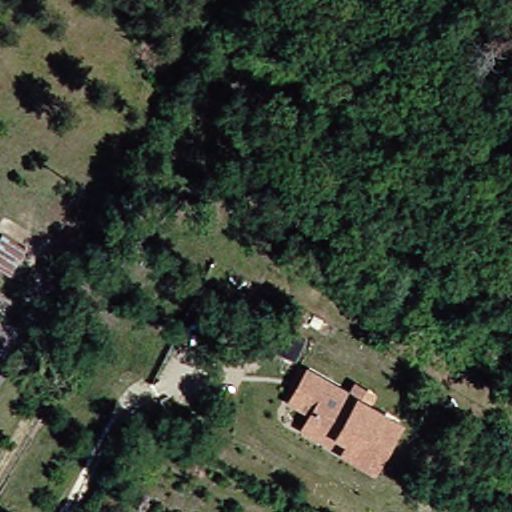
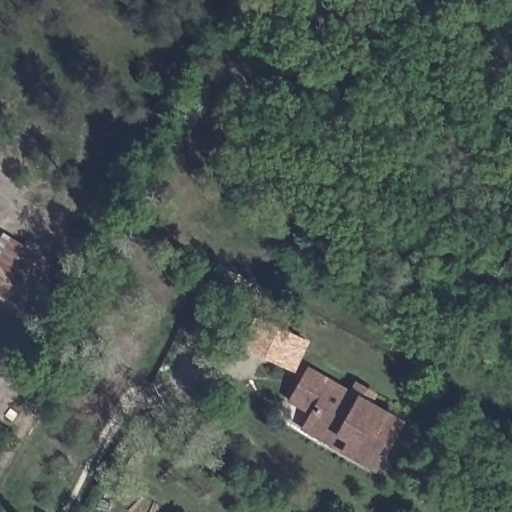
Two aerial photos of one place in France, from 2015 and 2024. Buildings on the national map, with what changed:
new [(255,317),(309,342),(294,373),(240,347),(255,317)]
unchanged [(305,430),(314,414),(293,401),(309,372),(397,426),(371,470),(343,453),(327,443),(305,430)]

